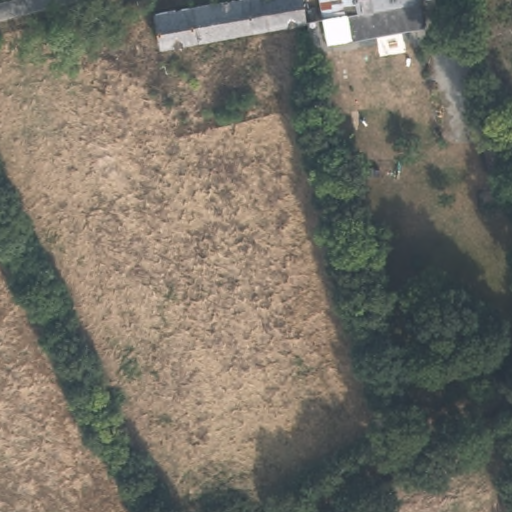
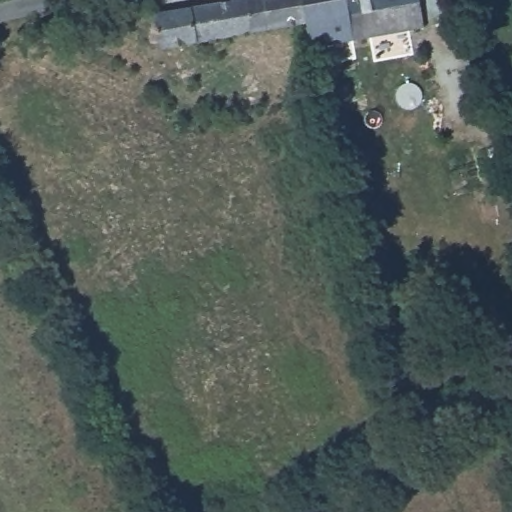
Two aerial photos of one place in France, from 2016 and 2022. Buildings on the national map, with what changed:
unchanged [(308,20),(308,26),(158,50),(152,14),(235,0),(303,0),(308,20)]
unchanged [(407,31),(352,41),(348,16),(325,18),(322,0),(418,0),(421,13),(423,29),(407,31)]
unchanged [(325,18),(348,16),(352,41),(312,48),(308,26),(308,20),(325,18)]

